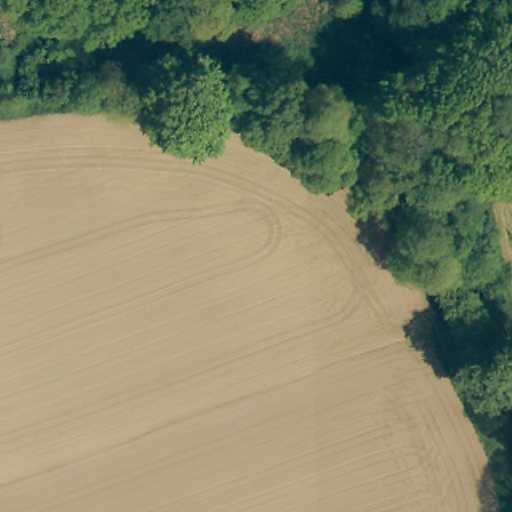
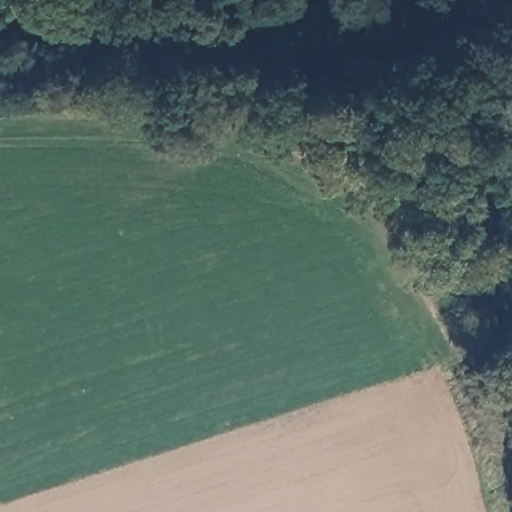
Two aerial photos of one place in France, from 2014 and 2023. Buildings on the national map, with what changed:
[]

